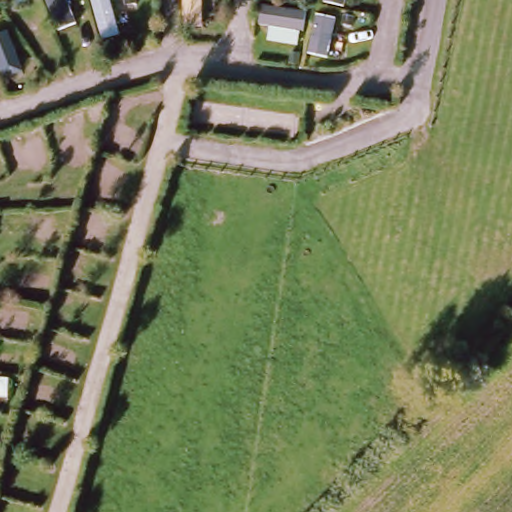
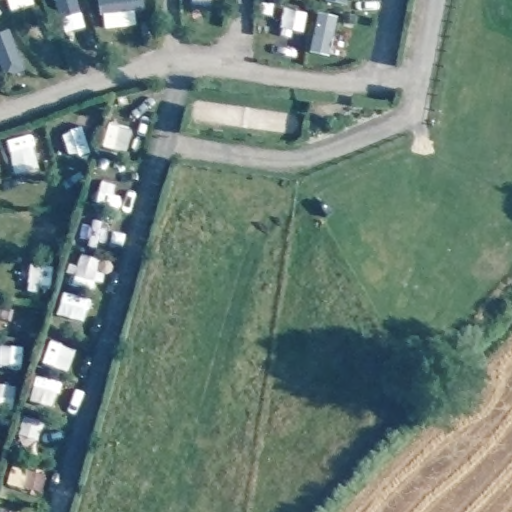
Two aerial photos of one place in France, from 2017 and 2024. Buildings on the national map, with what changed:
unchanged [(56,29),(48,0),(72,0),(80,22),(56,29)]
unchanged [(310,0),(315,0),(315,1),(310,0)]

